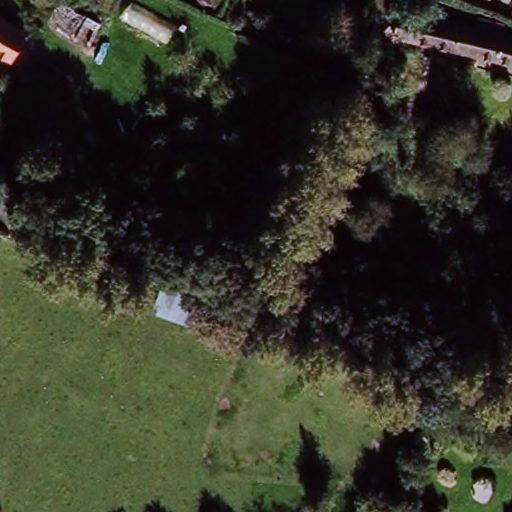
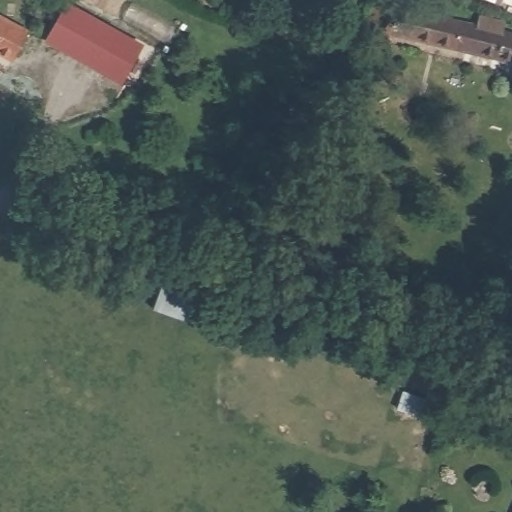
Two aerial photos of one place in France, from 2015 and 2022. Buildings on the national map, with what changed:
new [(144,45),(123,86),(42,42),(66,1),(144,45)]
unchanged [(399,9),(512,35),(512,63),(393,36),(399,9)]
unchanged [(6,64),(0,61),(0,23),(23,37),(6,64)]
unchanged [(153,216),(90,199),(60,190),(65,169),(96,177),(95,186),(156,205),(153,216)]
unchanged [(162,286),(220,307),(212,333),(152,311),(162,286)]
unchanged [(402,391),(426,400),(421,421),(395,413),(402,391)]

